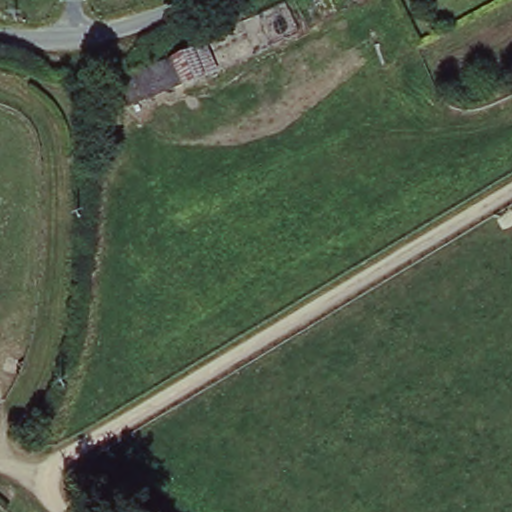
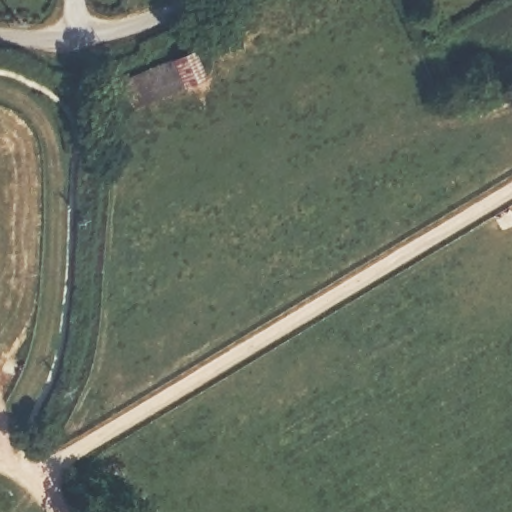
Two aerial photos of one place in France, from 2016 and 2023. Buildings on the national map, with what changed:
unchanged [(214,47),(222,72),(187,84),(136,103),(127,81),(181,60),(214,47)]
unchanged [(58,55),(57,70),(42,70),(43,55),(58,55)]

